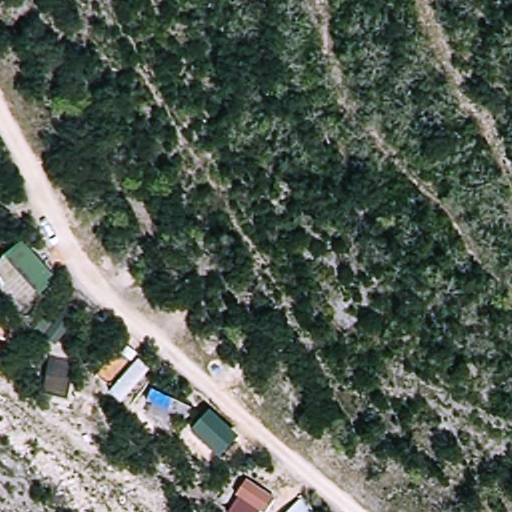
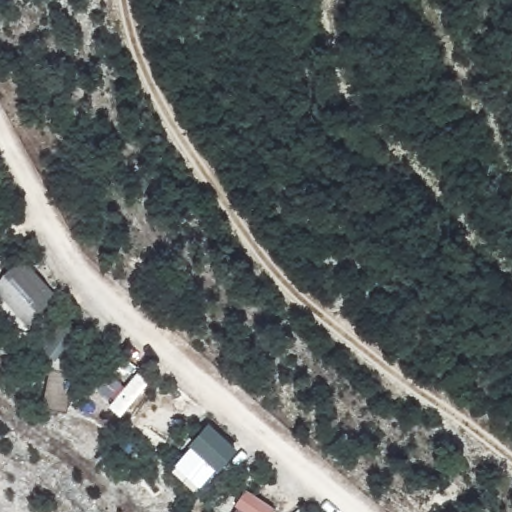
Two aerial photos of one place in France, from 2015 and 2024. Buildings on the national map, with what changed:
unchanged [(0,299),(0,283),(19,268),(47,301),(21,323),(0,299)]
new [(209,423),(238,448),(218,469),(216,467),(197,486),(176,466),(193,448),(190,444),(209,423)]
unchanged [(243,494),(259,512),(231,512),(243,494)]
new [(300,507),(305,512),(295,512),(300,507)]

